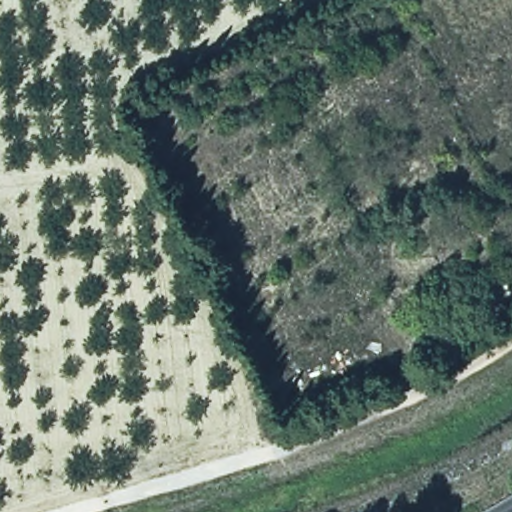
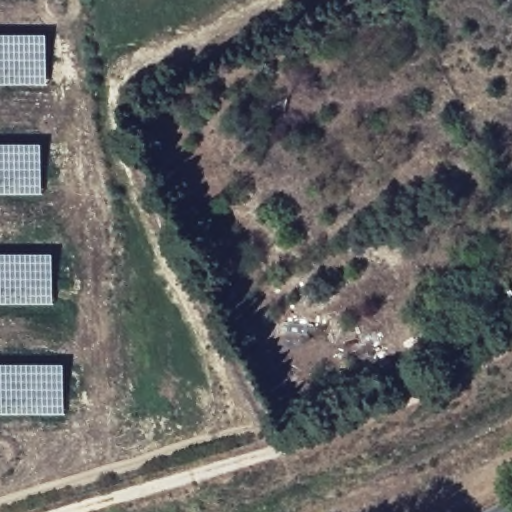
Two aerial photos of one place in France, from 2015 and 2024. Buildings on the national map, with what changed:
new [(0,84),(0,34),(46,34),(47,84),(0,84)]
new [(41,193),(0,193),(0,144),(42,144),(41,193)]
new [(53,303),(0,303),(0,254),(53,254),(53,303)]
new [(64,413),(0,413),(0,364),(64,364),(64,413)]

